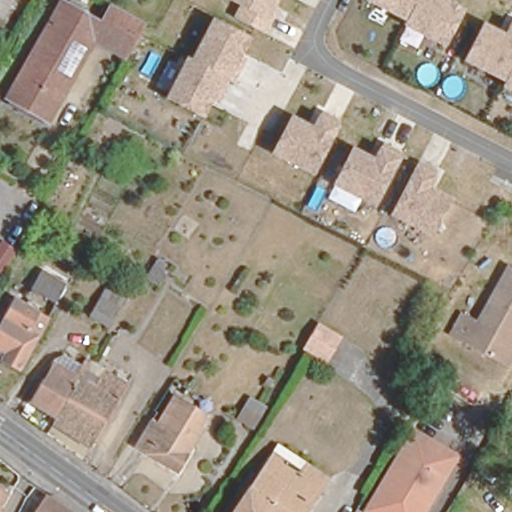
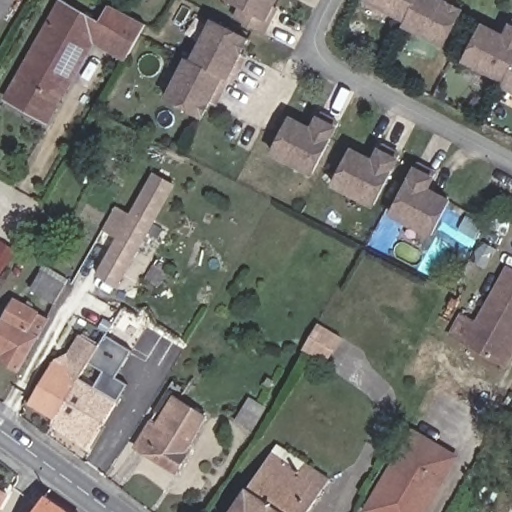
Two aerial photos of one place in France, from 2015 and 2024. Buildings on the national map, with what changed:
unchanged [(0,13),(0,0),(7,0),(0,13)]
unchanged [(265,34),(234,17),(240,5),(229,0),(281,0),(265,34)]
unchanged [(443,47),(403,27),(404,21),(365,1),(365,0),(446,0),(463,9),(443,47)]
unchanged [(120,65),(87,46),(43,126),(4,103),(56,8),(95,30),(107,10),(142,27),(120,65)]
unchanged [(231,82),(225,80),(203,120),(166,99),(187,59),(192,61),(213,20),(252,38),(231,82)]
unchanged [(500,89),(503,82),(462,61),(482,23),(503,36),(511,24),(512,24),(512,94),(500,89)]
unchanged [(292,117),(312,128),(317,116),(341,128),(313,176),(272,155),(292,117)]
unchanged [(377,208),(333,189),(352,150),(372,159),(377,148),(403,159),(377,208)]
unchanged [(432,190),(453,199),(435,237),(391,218),(416,167),(438,178),(432,190)]
new [(97,275),(116,239),(102,232),(116,206),(130,214),(152,172),(175,184),(119,287),(97,275)]
unchanged [(0,274),(0,242),(2,240),(16,249),(0,274)]
unchanged [(157,285),(146,277),(157,260),(169,267),(157,285)]
unchanged [(512,271),(512,359),(507,370),(447,336),(461,313),(476,320),(505,268),(512,271)]
unchanged [(70,288),(59,307),(36,295),(48,275),(70,288)]
unchanged [(24,305),(27,299),(33,302),(34,301),(48,309),(44,316),(33,335),(43,341),(25,373),(7,363),(0,360),(0,341),(22,304),(24,305)]
unchanged [(326,365),(301,352),(318,325),(342,338),(326,365)]
unchanged [(57,416),(32,400),(55,362),(65,356),(86,368),(57,416)]
unchanged [(127,385),(91,445),(54,422),(57,416),(86,368),(90,362),(127,385)]
unchanged [(201,422),(179,457),(182,459),(172,476),(132,450),(146,427),(151,430),(170,401),(201,422)]
unchanged [(237,420),(244,410),(260,419),(254,430),(237,420)]
unchanged [(455,458),(443,478),(445,480),(425,512),(369,512),(368,512),(414,434),(455,458)]
unchanged [(234,512),(277,446),(327,478),(305,512),(234,512)]
unchanged [(4,512),(0,512),(0,491),(12,498),(4,512)]
unchanged [(45,512),(52,502),(67,512),(45,512)]

